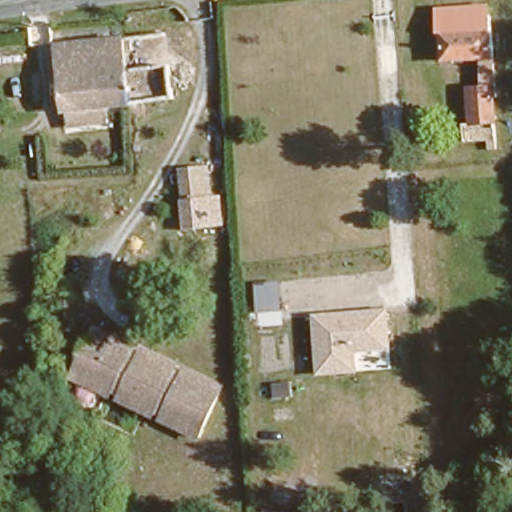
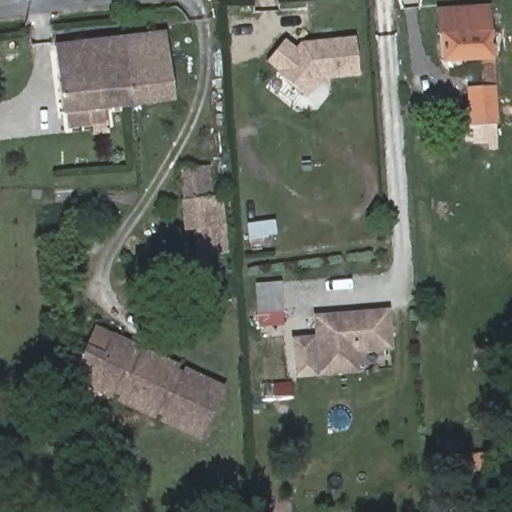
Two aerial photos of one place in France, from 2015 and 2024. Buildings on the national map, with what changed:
unchanged [(466,124),(473,124),(472,98),(471,87),(480,87),(480,59),(440,61),(437,11),(495,7),(502,145),(493,146),(493,138),(475,140),(467,140),(466,124)]
unchanged [(125,36),(167,31),(172,99),(130,102),(125,36)]
unchanged [(105,105),(60,109),(55,43),(125,36),(130,102),(105,105)]
new [(359,77),(320,80),(307,98),(266,64),(286,41),(295,48),(300,41),(355,36),(359,77)]
unchanged [(105,105),(109,126),(67,132),(60,109),(105,105)]
unchanged [(215,196),(223,196),(225,227),(185,232),(179,169),(211,167),(215,196)]
unchanged [(395,350),(359,353),(361,374),(318,377),(312,317),(391,310),(395,350)]
unchanged [(102,382),(99,388),(76,377),(89,350),(99,330),(115,339),(133,348),(130,355),(142,361),(145,355),(175,370),(172,375),(184,382),(187,376),(220,392),(197,439),(166,423),(169,418),(157,413),(155,418),(122,401),(125,396),(102,382)]

